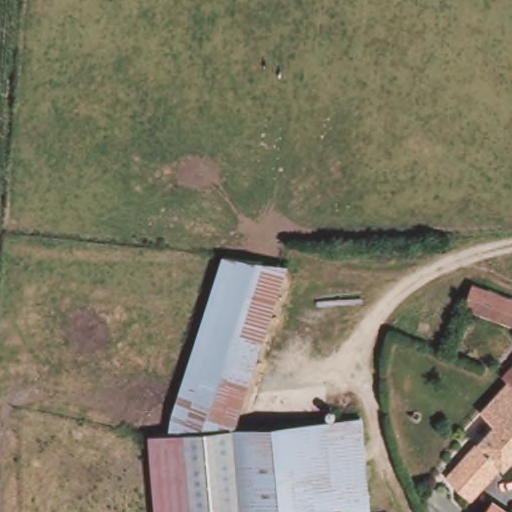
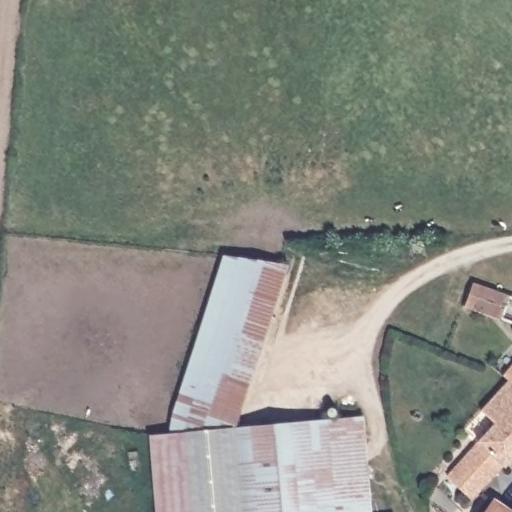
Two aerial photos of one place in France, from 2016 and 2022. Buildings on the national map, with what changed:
unchanged [(291,262),(233,435),(192,444),(163,451),(223,255),(291,262)]
unchanged [(512,293),(512,325),(458,307),(468,278),(512,293)]
unchanged [(512,381),(506,376),(499,371),(512,358),(512,381)]
unchanged [(512,460),(507,466),(472,499),(447,475),(495,423),(480,409),(508,379),(512,382),(512,460)]
unchanged [(147,436),(168,433),(163,451),(192,444),(233,435),(236,428),(363,416),(371,512),(155,512),(147,436)]
unchanged [(512,512),(483,512),(493,497),(512,509),(512,512)]

